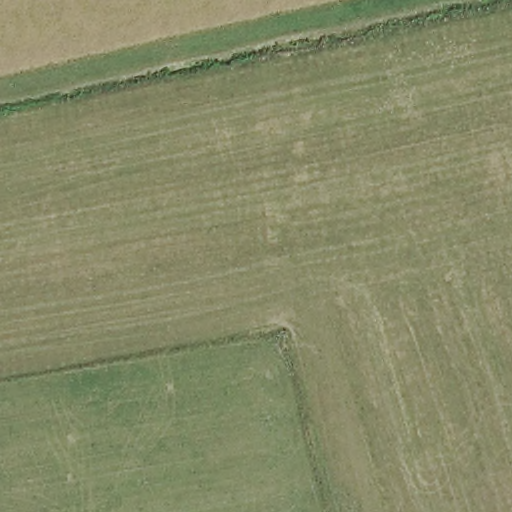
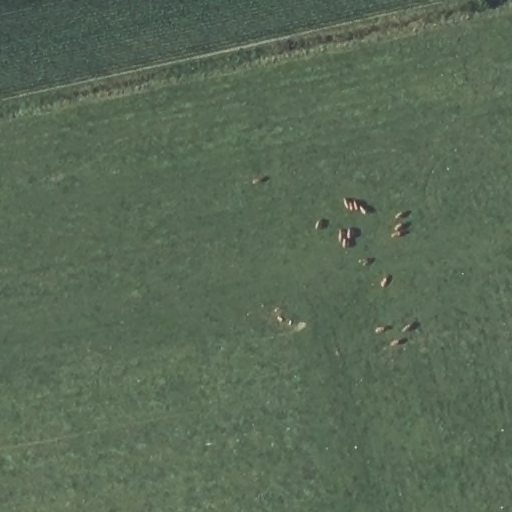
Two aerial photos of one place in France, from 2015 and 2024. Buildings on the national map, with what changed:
[]

